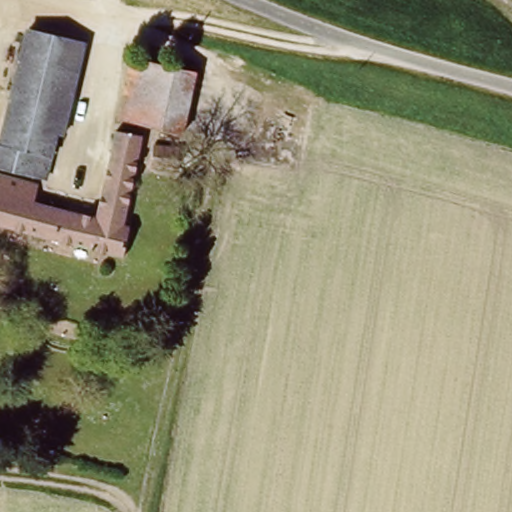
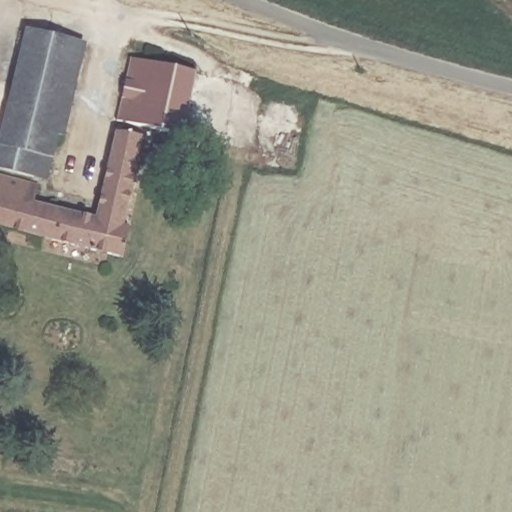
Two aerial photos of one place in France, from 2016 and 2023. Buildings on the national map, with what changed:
unchanged [(0,167),(0,142),(29,30),(86,45),(62,137),(59,136),(52,159),(47,180),(35,177),(0,167)]
unchanged [(199,75),(187,135),(122,122),(134,62),(199,75)]
unchanged [(0,175),(40,187),(36,202),(97,221),(115,132),(141,137),(126,229),(131,230),(123,262),(17,231),(15,237),(0,232),(0,175)]

